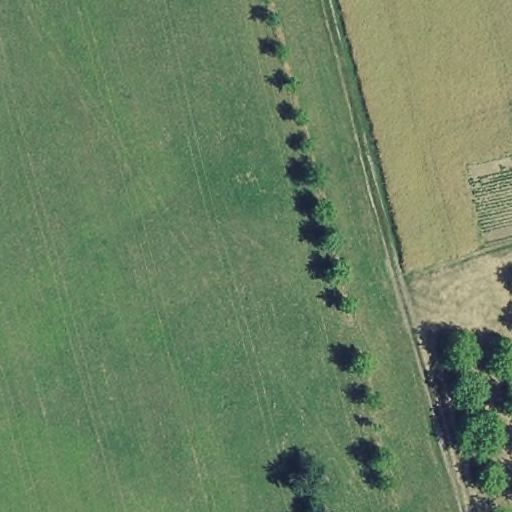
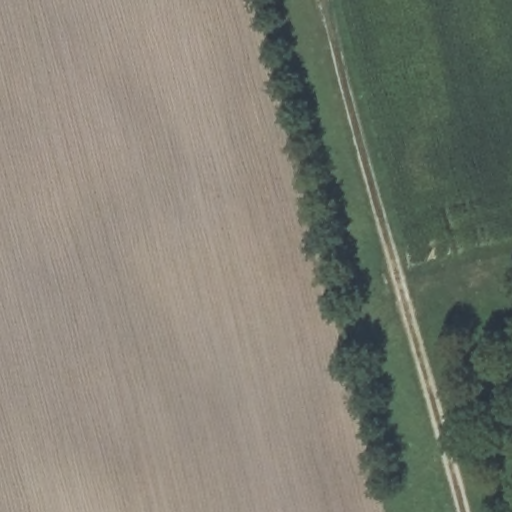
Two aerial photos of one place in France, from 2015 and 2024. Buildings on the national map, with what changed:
[]

